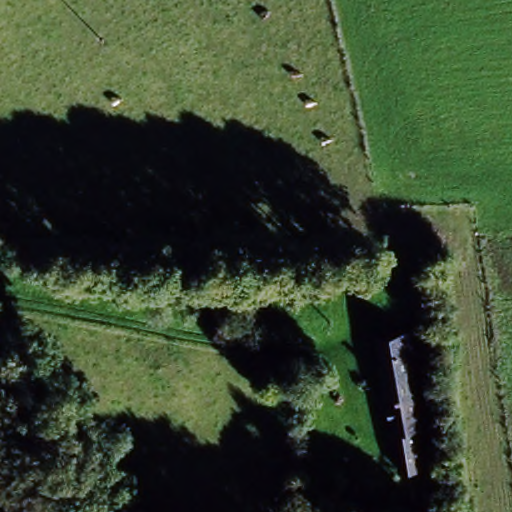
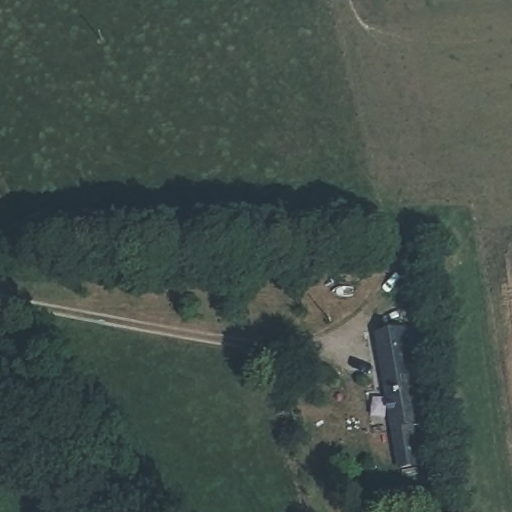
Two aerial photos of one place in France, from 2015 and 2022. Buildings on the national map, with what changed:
unchanged [(412,331),(425,420),(415,422),(420,467),(394,470),(376,336),(412,331)]
unchanged [(443,501),(428,503),(426,487),(441,485),(443,501)]

